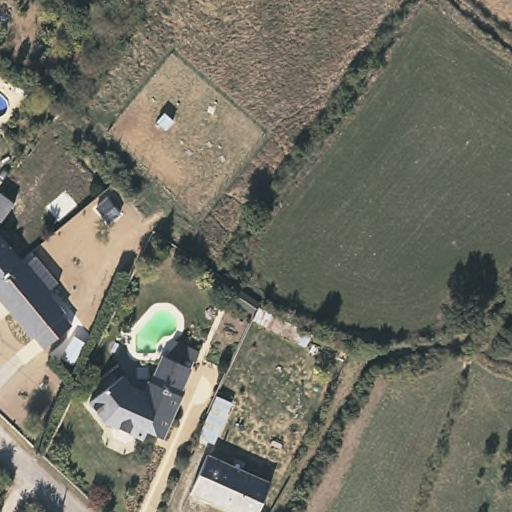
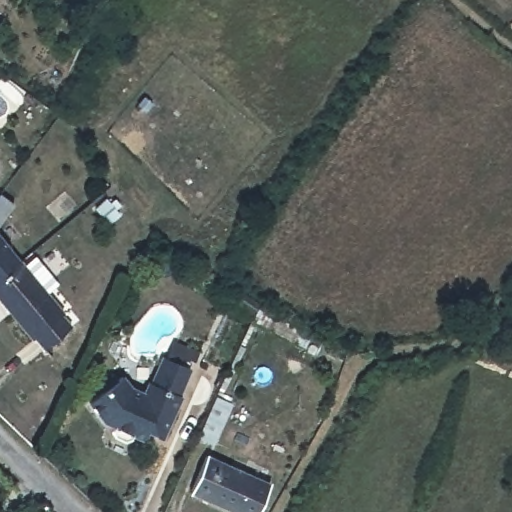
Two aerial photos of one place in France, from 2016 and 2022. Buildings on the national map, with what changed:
unchanged [(0,225),(0,194),(15,204),(0,225)]
unchanged [(43,297),(60,317),(57,319),(67,330),(40,353),(30,341),(27,343),(6,317),(0,309),(0,234),(26,264),(31,261),(54,288),(43,297)]
unchanged [(127,253),(116,263),(107,252),(118,242),(127,253)]
unchanged [(254,321),(260,308),(272,314),(267,327),(254,321)]
unchanged [(312,334),(306,347),(297,342),(302,329),(312,334)]
unchanged [(189,370),(178,396),(181,397),(161,438),(145,433),(142,440),(132,436),(130,439),(125,441),(116,438),(112,432),(114,427),(103,422),(88,402),(105,390),(100,383),(112,375),(117,380),(122,376),(130,388),(143,394),(149,382),(152,383),(164,358),(189,370)]
unchanged [(236,404),(217,443),(201,435),(219,397),(236,404)]
unchanged [(271,483),(257,512),(235,512),(210,501),(212,496),(194,487),(208,454),(271,483)]

